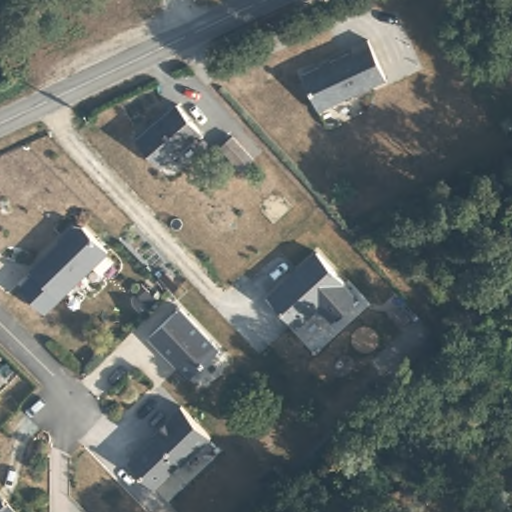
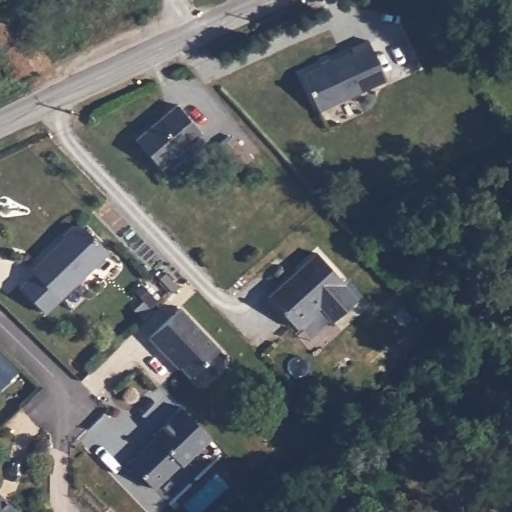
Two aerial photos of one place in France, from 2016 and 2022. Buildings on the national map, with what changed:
unchanged [(346,41),(366,34),(383,75),(314,105),(301,67),(348,47),(346,41)]
unchanged [(206,132),(161,170),(133,138),(177,102),(206,132)]
unchanged [(233,129),(257,155),(244,167),(221,140),(233,129)]
unchanged [(110,252),(60,299),(33,270),(68,237),(66,236),(80,222),(110,252)]
unchanged [(318,251),(359,301),(331,324),(318,309),(296,329),(269,295),(318,251)]
unchanged [(170,351),(168,353),(148,331),(178,303),(216,344),(187,370),(170,351)]
unchanged [(214,437),(183,465),(182,464),(155,488),(131,462),(157,438),(155,436),(171,422),(170,420),(185,406),(214,437)]
unchanged [(13,512),(0,512),(0,498),(13,512)]

